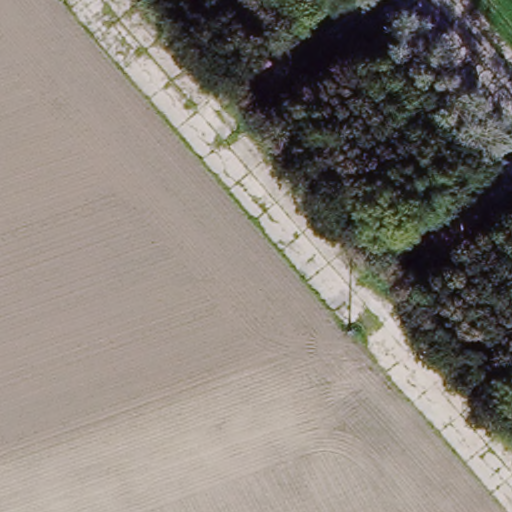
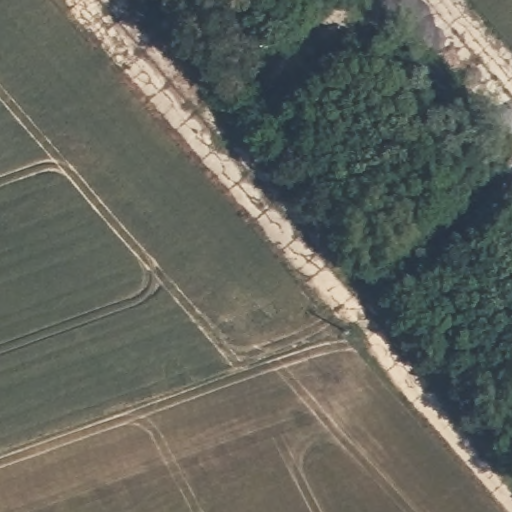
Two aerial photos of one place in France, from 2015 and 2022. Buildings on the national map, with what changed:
[]

